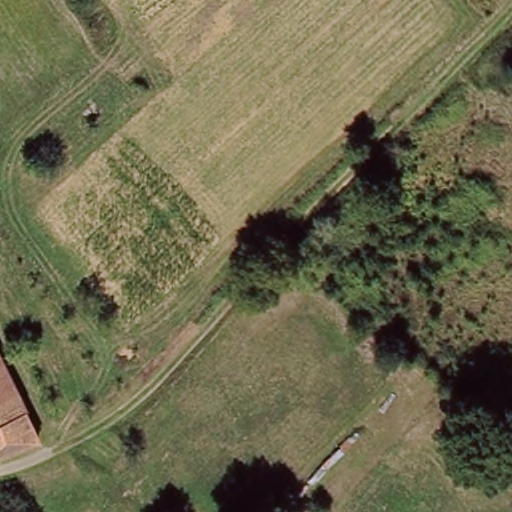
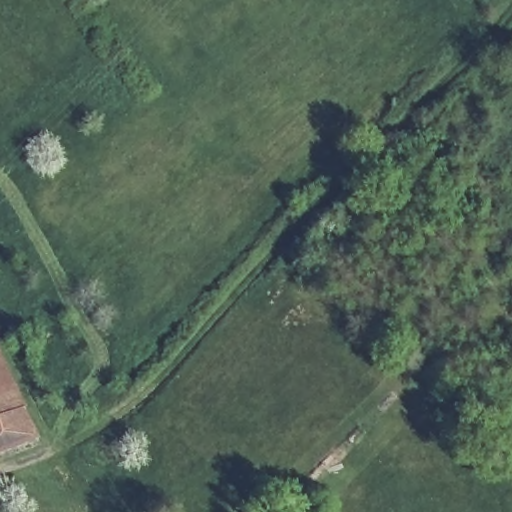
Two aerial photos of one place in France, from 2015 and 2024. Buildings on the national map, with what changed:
unchanged [(4,368),(18,397),(33,427),(40,442),(0,459),(0,360),(4,368)]

